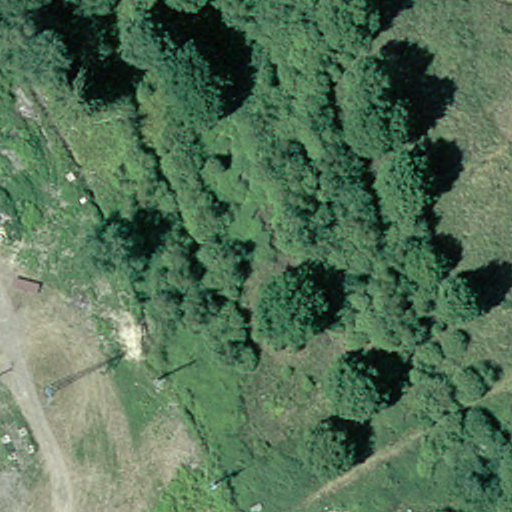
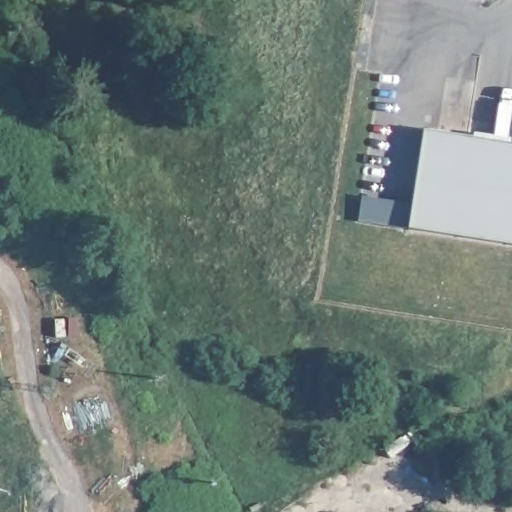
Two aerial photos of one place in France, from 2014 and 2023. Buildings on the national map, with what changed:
new [(414,201),(424,129),(512,143),(512,243),(409,226),(360,219),(362,194),(414,201)]

